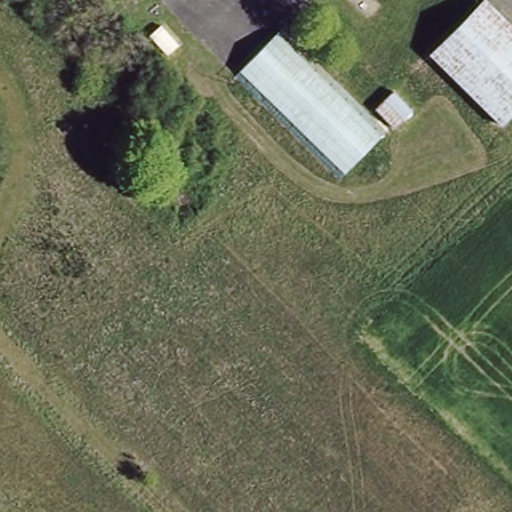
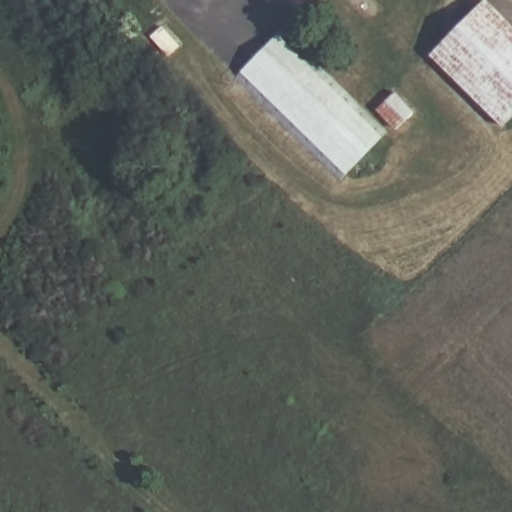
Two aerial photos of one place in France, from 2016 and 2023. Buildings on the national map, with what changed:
unchanged [(512,30),(512,103),(500,117),(435,57),(484,4),(512,30)]
unchanged [(341,182),(233,81),(278,33),(367,116),(385,133),(341,182)]

